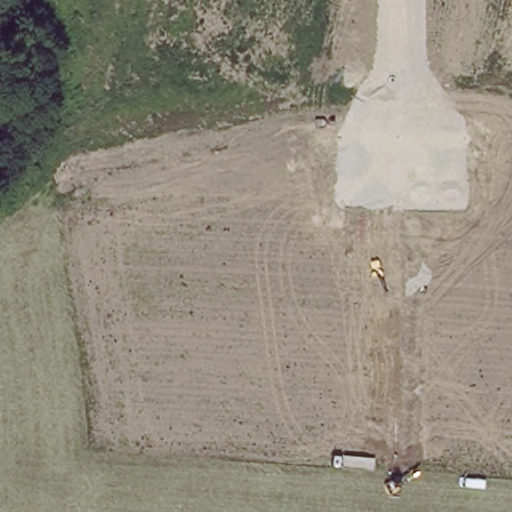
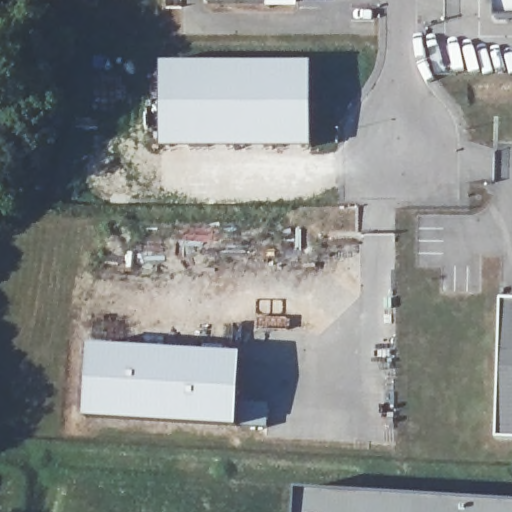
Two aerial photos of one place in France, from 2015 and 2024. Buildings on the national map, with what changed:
new [(496,19),(496,0),(512,0),(512,18),(496,19)]
new [(307,73),(305,155),(155,157),(156,73),(307,73)]
new [(497,439),(501,299),(512,300),(512,440),(497,439)]
new [(236,427),(86,418),(91,346),(241,356),(236,427)]
new [(408,512),(286,512),(286,506),(408,512)]

